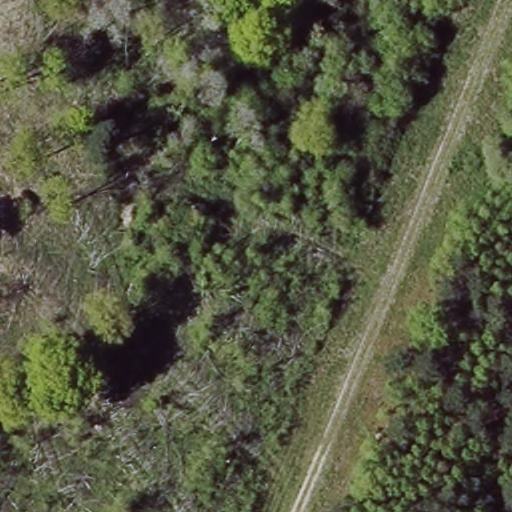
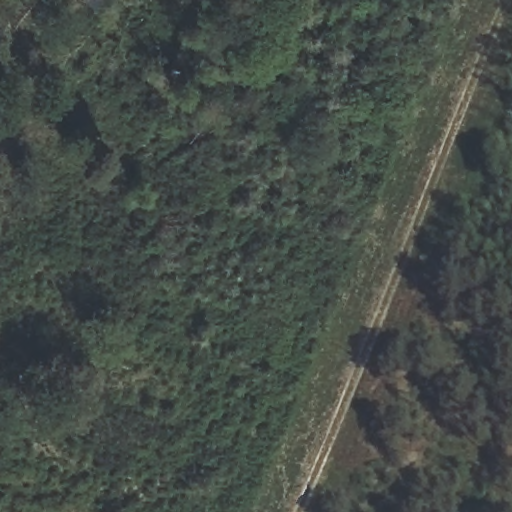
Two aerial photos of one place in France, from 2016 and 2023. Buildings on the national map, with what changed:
unchanged [(362,79),(393,11),(422,24),(380,115),(351,102),(354,94),(334,85),(342,70),(362,79)]

